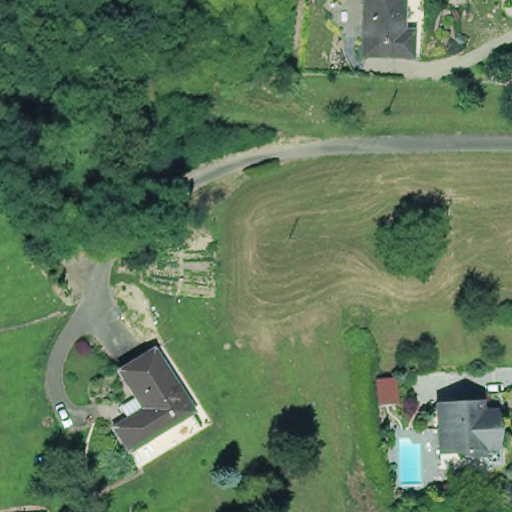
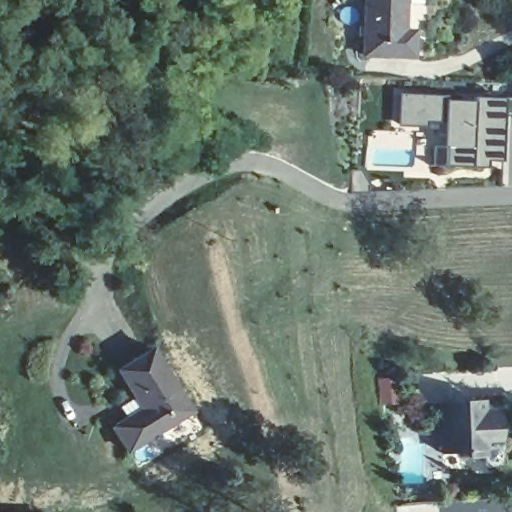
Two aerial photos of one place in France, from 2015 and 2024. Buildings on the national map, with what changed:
unchanged [(412,56),(364,55),(364,51),(365,0),(402,0),(402,30),(412,30),(412,52),(412,56)]
new [(449,95),(449,101),(475,103),(475,98),(507,99),(505,163),(489,161),(488,167),(445,165),(445,124),(431,123),(432,130),(400,127),(400,94),(449,95)]
unchanged [(132,447),(117,424),(146,406),(122,368),(157,347),(195,410),(132,447)]
unchanged [(495,457),(492,460),(480,460),(477,458),(477,450),(461,451),(455,446),(436,447),(435,432),(434,397),(474,395),(475,408),(480,413),(490,412),(490,428),(491,440),(493,442),(495,457)]

